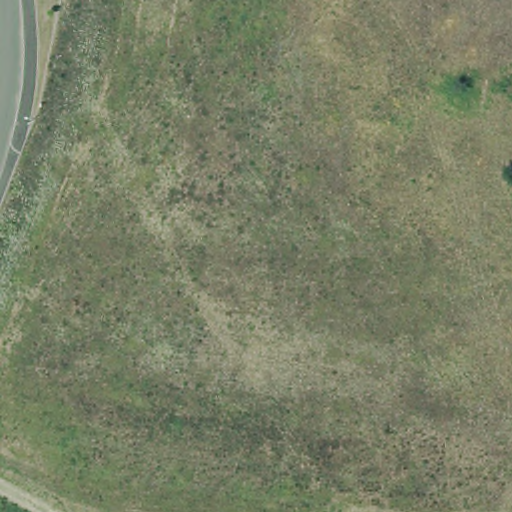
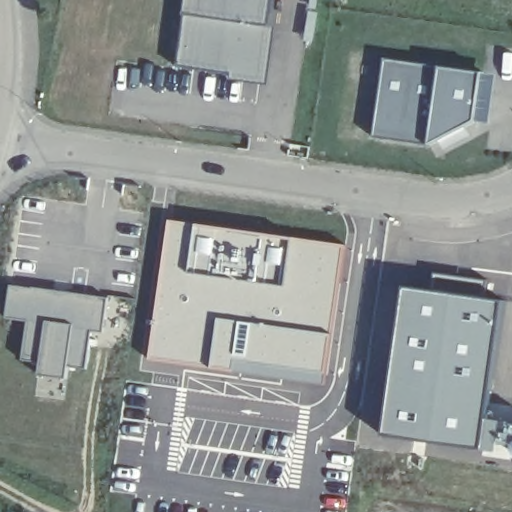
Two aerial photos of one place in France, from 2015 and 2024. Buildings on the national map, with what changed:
new [(173,64),(182,0),(269,0),(258,82),(173,64)]
new [(474,120),(465,125),(470,134),(443,149),(438,139),(428,144),(373,136),(385,59),(439,65),(482,71),(497,73),(490,124),(474,120)]
new [(170,221),(344,246),(327,385),(152,360),(170,221)]
new [(432,289),(434,272),(487,280),(484,296),(502,300),(485,417),(502,420),(497,450),(385,433),(405,285),(432,289)]
new [(85,330),(81,370),(63,367),(60,382),(33,376),(33,363),(17,363),(23,321),(0,316),(0,286),(105,300),(100,331),(85,330)]

